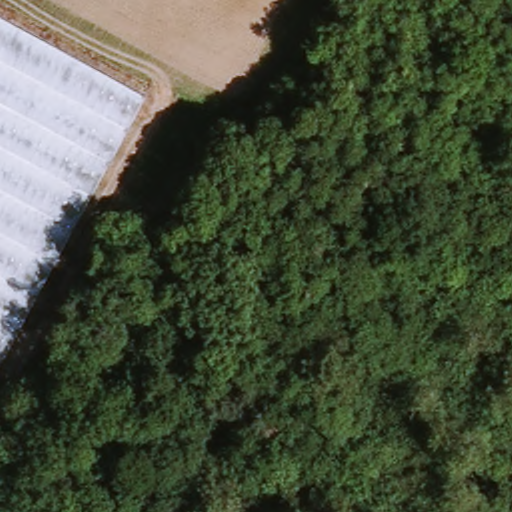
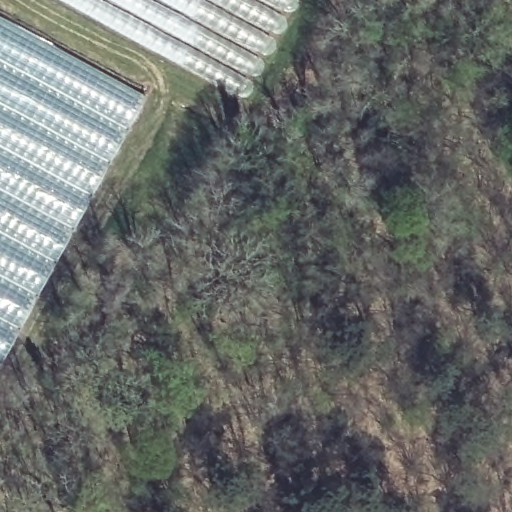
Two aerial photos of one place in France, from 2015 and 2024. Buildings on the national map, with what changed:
new [(63,0),(288,0),(237,95),(63,0)]
unchanged [(146,97),(0,367),(0,17),(146,97)]

